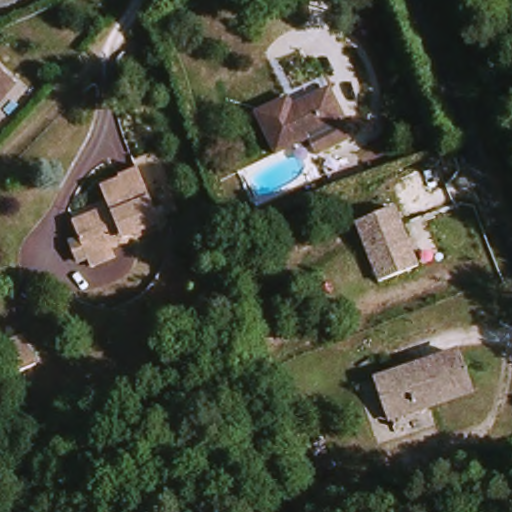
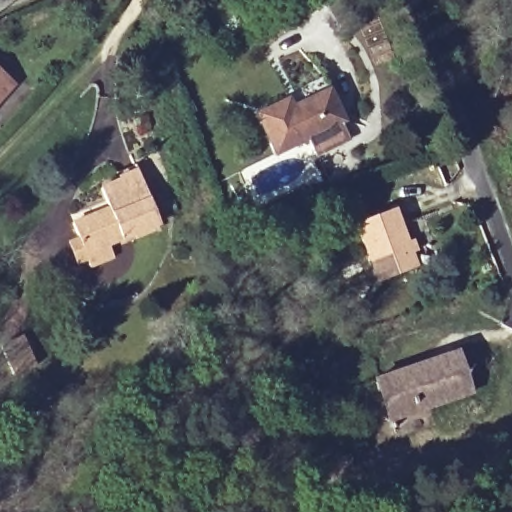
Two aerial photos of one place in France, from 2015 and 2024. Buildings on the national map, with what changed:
unchanged [(0,105),(0,71),(17,91),(0,105)]
unchanged [(315,156),(310,142),(277,155),(261,112),(293,100),(297,110),(333,96),(350,142),(315,156)]
unchanged [(94,264),(90,254),(76,223),(114,206),(106,188),(126,180),(124,172),(140,165),(142,172),(163,221),(111,244),(115,255),(94,264)]
unchanged [(421,268),(383,284),(360,227),(397,211),(421,268)]
unchanged [(461,352),(475,392),(395,420),(381,380),(461,352)]

